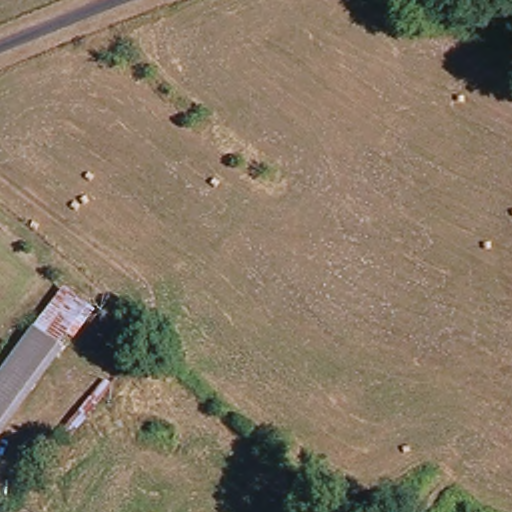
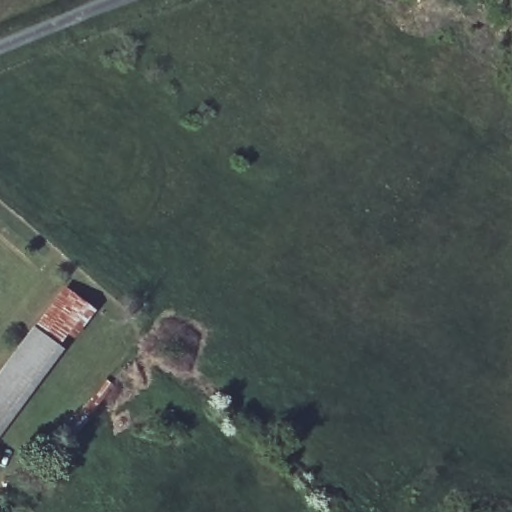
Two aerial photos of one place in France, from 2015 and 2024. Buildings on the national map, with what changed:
unchanged [(64,285),(96,311),(75,340),(68,333),(59,345),(66,349),(0,437),(0,375),(64,285)]

